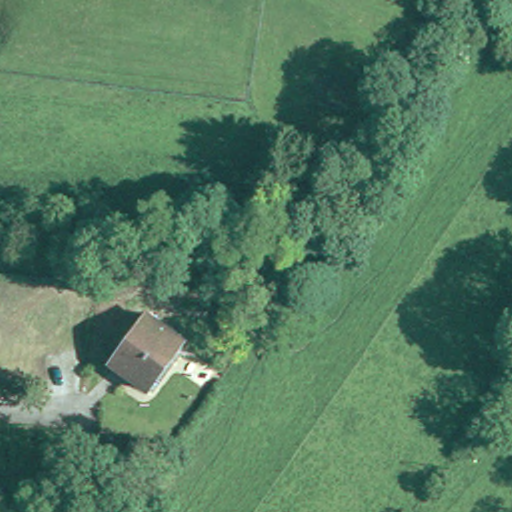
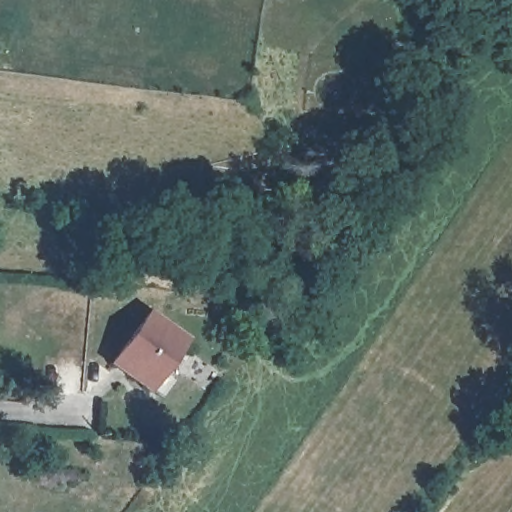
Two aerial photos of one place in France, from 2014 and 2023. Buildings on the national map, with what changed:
unchanged [(153,385),(115,358),(152,308),(189,334),(153,385)]

